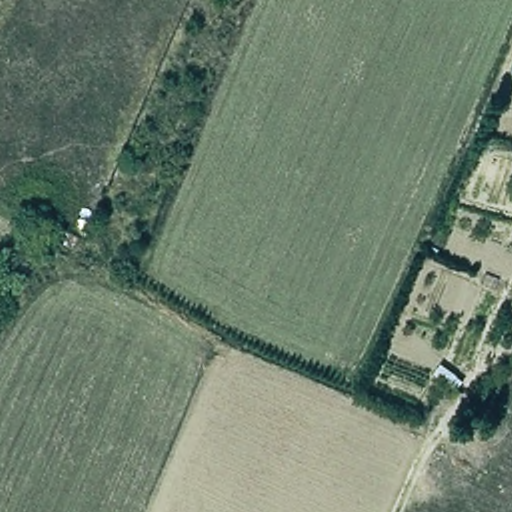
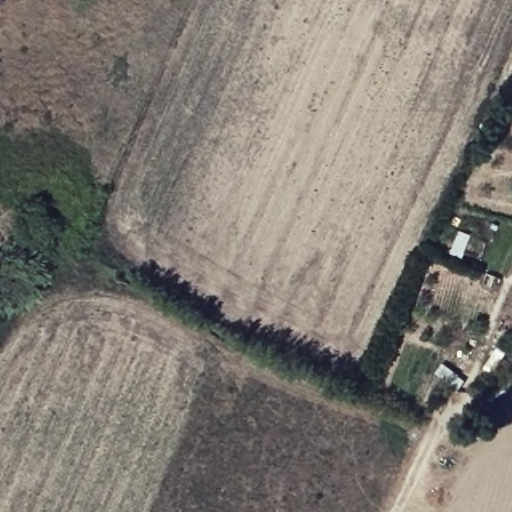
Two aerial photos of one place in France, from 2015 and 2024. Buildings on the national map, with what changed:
unchanged [(64,222),(90,235),(79,251),(55,239),(64,222)]

